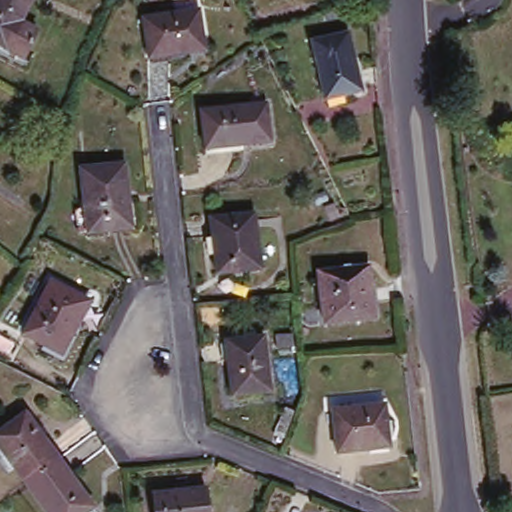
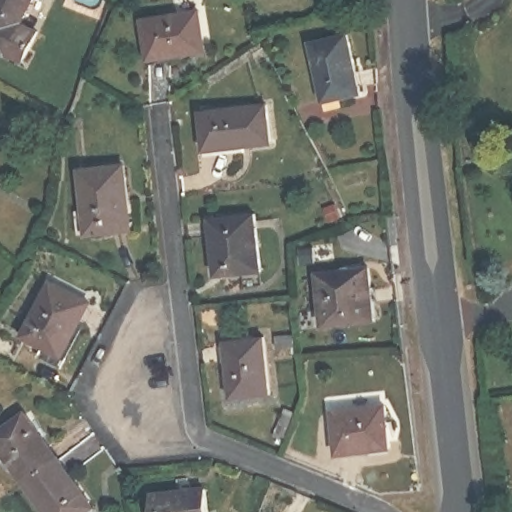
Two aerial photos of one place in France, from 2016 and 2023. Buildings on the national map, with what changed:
unchanged [(24,22),(41,30),(27,58),(10,50),(9,52),(0,48),(0,0),(34,0),(24,22)]
unchanged [(201,46),(145,49),(144,11),(200,9),(201,46)]
unchanged [(359,90),(323,99),(310,42),(346,33),(359,90)]
unchanged [(268,138),(203,146),(199,108),(264,100),(268,138)]
unchanged [(135,224),(92,229),(86,169),(129,164),(135,224)]
unchanged [(258,271),(216,276),(210,220),(252,215),(258,271)]
unchanged [(375,315),(321,325),(312,275),(366,265),(375,315)]
unchanged [(65,350),(27,331),(54,279),(92,298),(65,350)]
unchanged [(267,393),(230,398),(224,343),(261,339),(267,393)]
unchanged [(393,444),(342,449),(337,406),(388,400),(393,444)]
unchanged [(0,444),(0,430),(25,412),(58,459),(27,481),(25,482),(0,444)]
unchanged [(85,512),(48,512),(27,481),(58,459),(90,508),(85,512)]
unchanged [(153,512),(151,496),(204,490),(206,512),(153,512)]

